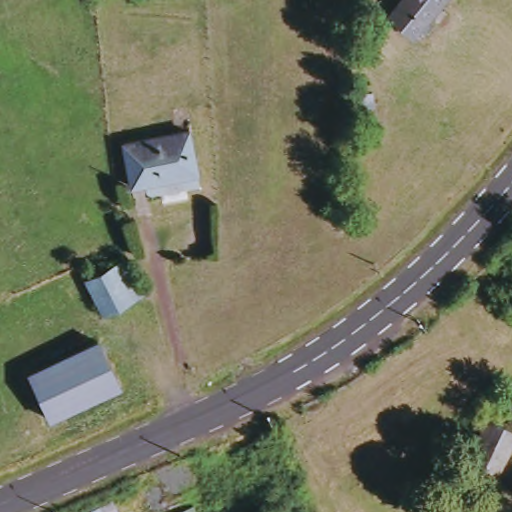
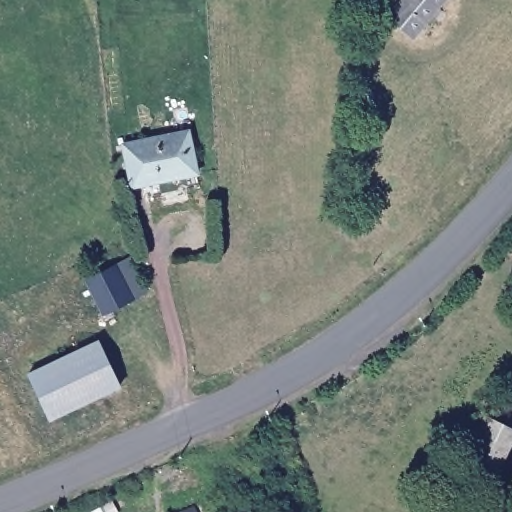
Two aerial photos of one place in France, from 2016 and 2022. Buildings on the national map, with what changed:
unchanged [(413,36),(389,16),(402,0),(444,0),(413,36)]
unchanged [(199,179),(136,191),(128,148),(191,136),(199,179)]
unchanged [(144,293),(103,314),(86,280),(128,260),(144,293)]
unchanged [(55,423),(34,380),(100,346),(123,391),(55,423)]
unchanged [(499,490),(472,476),(496,427),(512,435),(512,462),(499,490)]
unchanged [(194,512),(180,512),(192,507),(194,512)]

